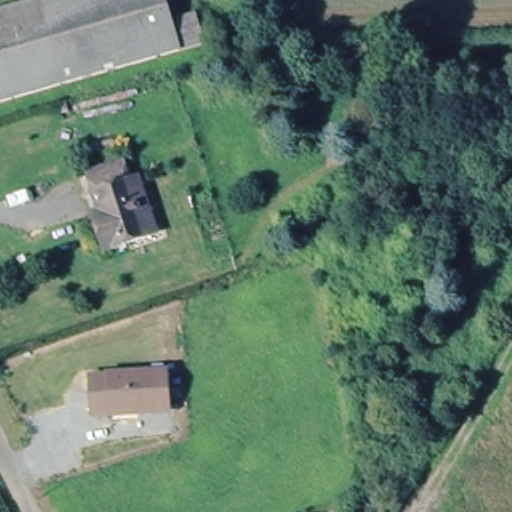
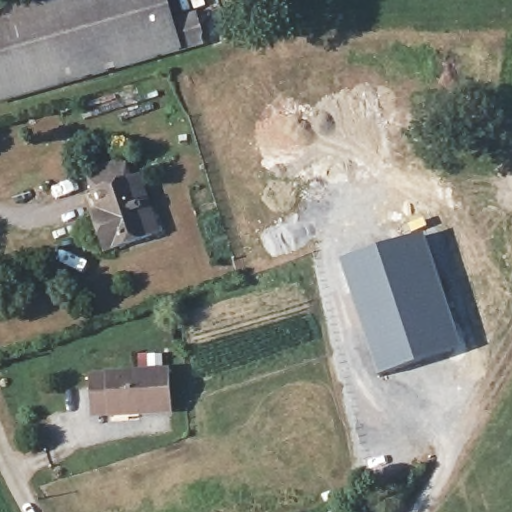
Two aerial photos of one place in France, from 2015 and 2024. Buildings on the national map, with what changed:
unchanged [(36,0),(176,0),(180,13),(171,16),(172,21),(197,14),(205,42),(0,102),(0,10),(36,0)]
unchanged [(100,214),(93,195),(95,194),(89,176),(120,165),(125,184),(128,183),(137,181),(148,213),(156,237),(103,255),(95,231),(90,217),(100,214)]
new [(425,234),(465,351),(378,377),(340,262),(425,234)]
unchanged [(90,390),(89,377),(106,376),(106,375),(165,371),(167,412),(109,416),(109,415),(91,416),(90,390)]

